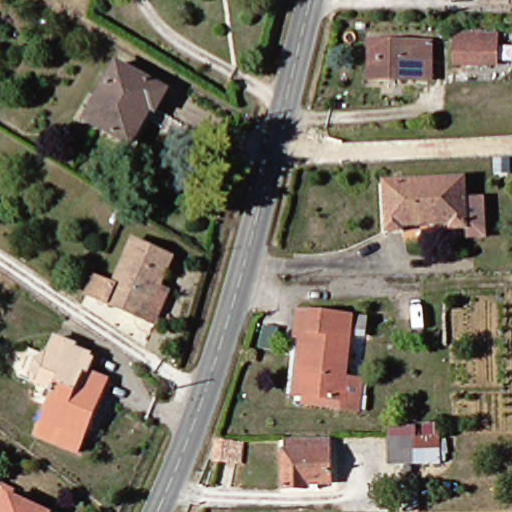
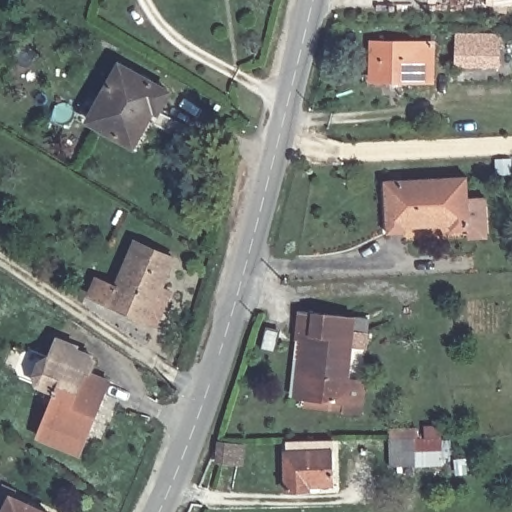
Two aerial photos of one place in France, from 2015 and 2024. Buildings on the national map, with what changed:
unchanged [(493,70),(493,75),(486,75),(486,70),(453,70),(453,39),(497,39),(497,70),(493,70)]
unchanged [(367,85),(367,47),(427,48),(427,86),(367,85)]
unchanged [(97,105),(120,64),(170,91),(158,112),(154,110),(134,146),(97,126),(89,121),(97,105)]
unchanged [(385,186),(467,182),(470,234),(451,235),(451,230),(405,233),(405,238),(387,239),(385,186)]
unchanged [(151,330),(142,326),(84,301),(91,284),(111,293),(130,247),(169,264),(155,295),(165,300),(151,330)]
unchanged [(301,349),(297,349),(300,322),(354,327),(345,413),(305,409),(295,408),(301,349)]
unchanged [(34,443),(51,398),(32,391),(30,381),(35,367),(44,362),(46,363),(54,344),(71,351),(70,355),(86,361),(85,364),(89,366),(85,378),(104,386),(75,459),(34,443)]
unchanged [(441,439),(442,465),(390,467),(389,441),(441,439)]
unchanged [(239,441),(236,464),(216,462),(219,442),(239,441)]
unchanged [(328,444),(330,490),(304,491),(305,496),(282,496),(280,456),(282,456),(282,445),(328,444)]
unchanged [(5,486),(15,491),(12,497),(45,512),(0,512),(0,498),(5,486)]

